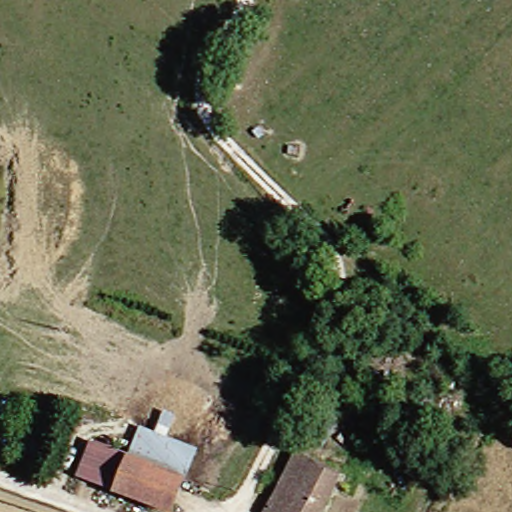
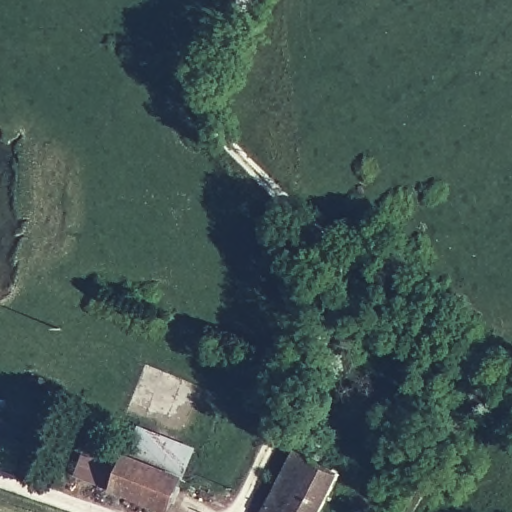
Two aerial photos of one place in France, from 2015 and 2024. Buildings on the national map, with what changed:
unchanged [(325,455),(302,442),(312,420),(336,434),(325,455)]
unchanged [(131,434),(185,459),(173,482),(119,458),(131,434)]
unchanged [(106,489),(73,476),(87,444),(119,458),(106,489)]
unchanged [(312,512),(259,512),(286,455),(331,479),(312,512)]
unchanged [(173,482),(158,512),(155,512),(106,489),(119,458),(173,482)]

